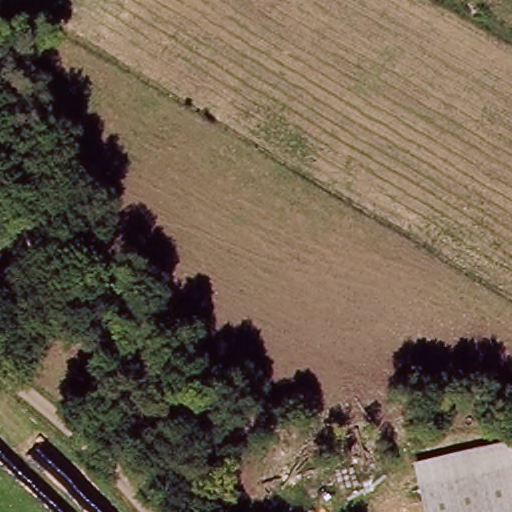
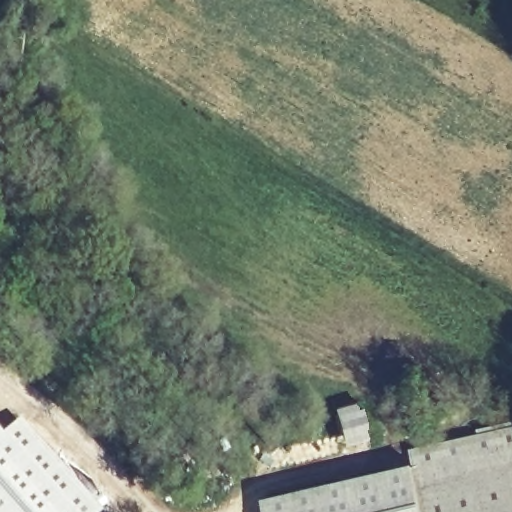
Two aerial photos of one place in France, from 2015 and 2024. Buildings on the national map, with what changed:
new [(365,407),(376,445),(343,453),(332,417),(365,407)]
new [(100,512),(0,512),(0,433),(17,418),(100,512)]
new [(412,448),(512,426),(512,440),(472,450),(415,462),(412,448)]
unchanged [(410,462),(472,450),(512,440),(512,512),(424,512),(410,462)]
new [(424,512),(268,512),(265,497),(410,462),(424,512)]

